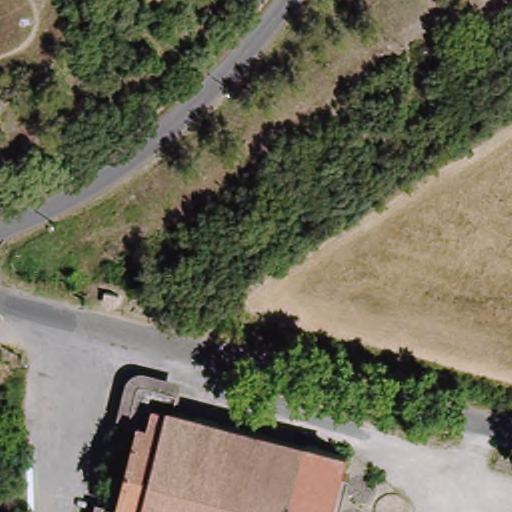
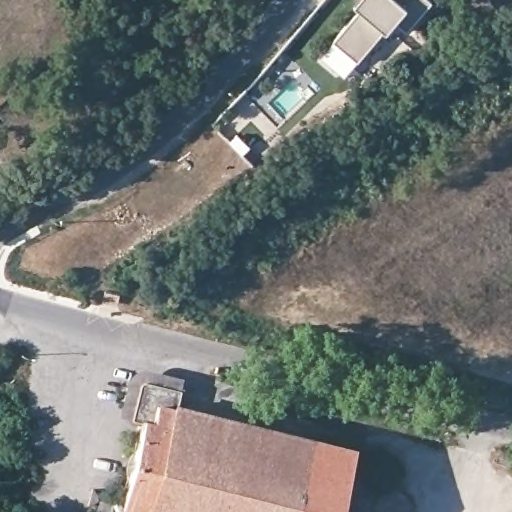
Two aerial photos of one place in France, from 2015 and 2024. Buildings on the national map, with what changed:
new [(395,22),(386,32),(344,77),(322,58),(361,10),(356,6),(360,0),(430,0),(432,1),(408,31),(395,22)]
unchanged [(335,512),(94,512),(97,497),(106,498),(130,421),(123,419),(137,374),(179,386),(177,398),(350,452),(335,512)]

